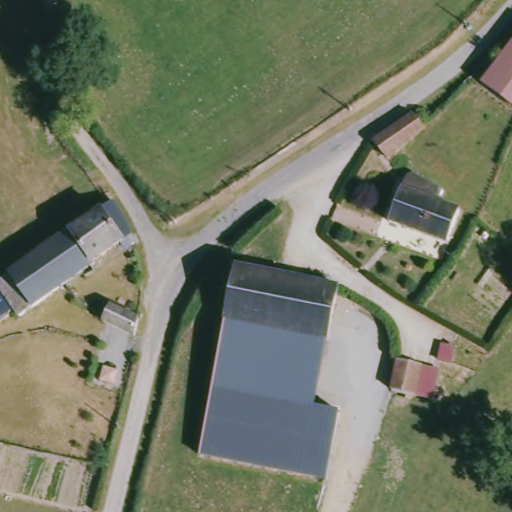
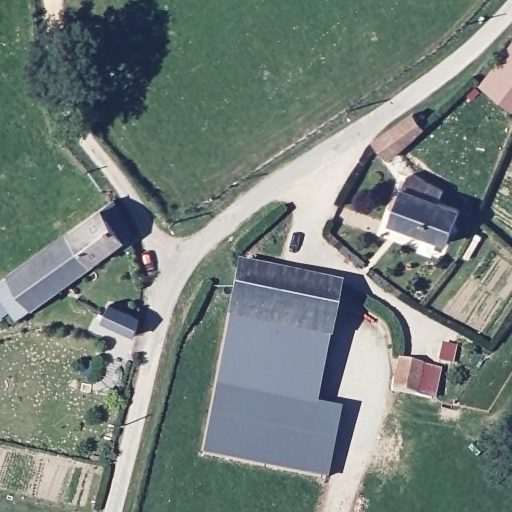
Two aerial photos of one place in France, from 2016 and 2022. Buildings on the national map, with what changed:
unchanged [(512,53),(512,102),(489,85),(512,53)]
unchanged [(415,111),(429,124),(405,149),(393,162),(376,145),(415,111)]
unchanged [(392,225),(406,181),(419,177),(445,186),(466,194),(463,201),(449,247),(392,225)]
unchanged [(136,232),(23,313),(0,284),(0,281),(115,198),(130,220),(136,232)]
unchanged [(281,254),(279,268),(350,284),(337,340),(234,316),(247,263),(249,264),(254,248),(281,254)]
unchanged [(140,341),(107,326),(115,308),(144,322),(140,341)]
unchanged [(337,340),(321,406),(343,411),(326,479),(202,449),(234,316),(337,340)]
unchanged [(409,361),(431,366),(425,395),(404,391),(406,377),(409,361)]

